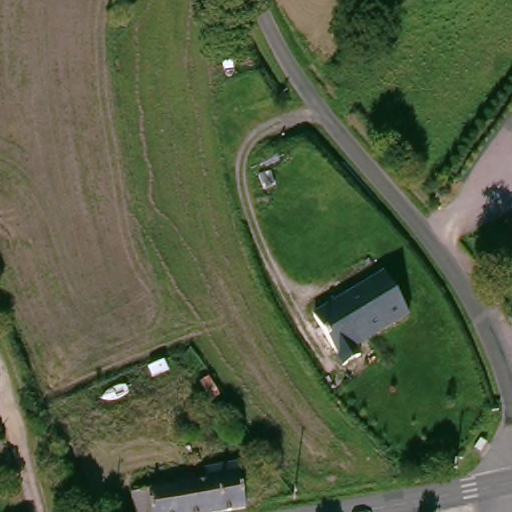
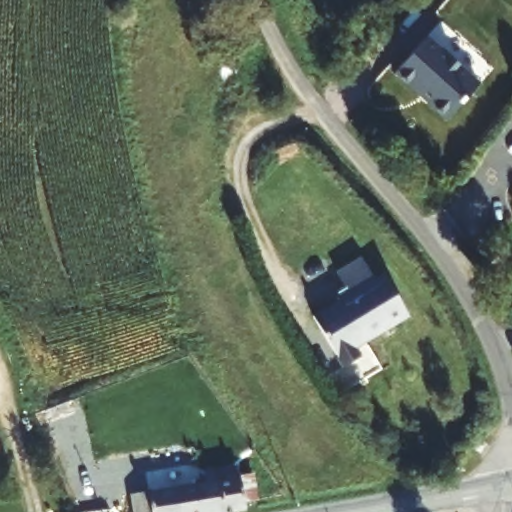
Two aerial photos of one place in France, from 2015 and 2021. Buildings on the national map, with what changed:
new [(478,82),(445,118),(396,72),(427,36),(478,82)]
unchanged [(381,270),(407,310),(355,345),(360,352),(344,363),(312,315),(381,270)]
unchanged [(204,512),(136,512),(133,488),(153,486),(202,480),(203,465),(245,460),(248,506),(204,512)]
demolished [(487,512),(482,512),(486,511),(487,512)]

